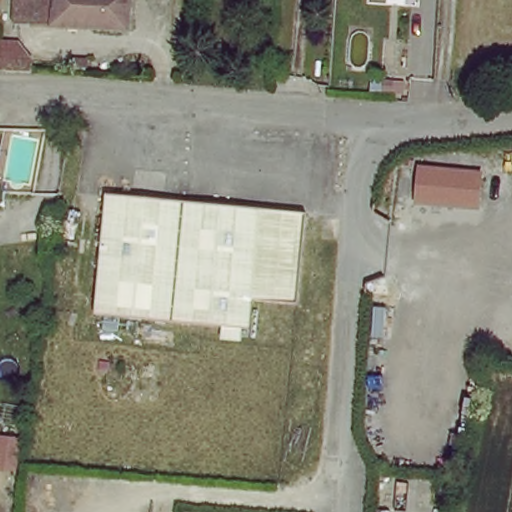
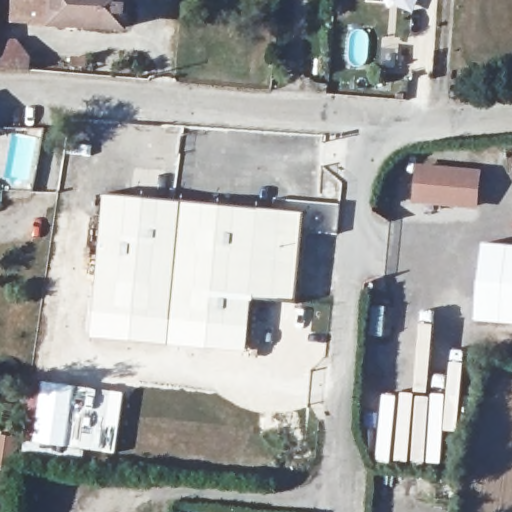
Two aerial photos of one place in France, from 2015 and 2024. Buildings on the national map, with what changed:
unchanged [(126,26),(29,23),(29,0),(128,0),(126,26)]
new [(417,164),(482,170),(477,210),(413,203),(417,164)]
unchanged [(218,336),(219,325),(91,318),(105,192),(303,207),(296,300),(251,298),(248,326),(239,325),(238,337),(218,336)]
new [(481,240),(512,243),(512,324),(472,321),(481,240)]
new [(39,380),(77,385),(72,426),(77,427),(73,448),(29,443),(39,380)]
new [(77,385),(123,391),(114,453),(73,448),(77,427),(72,426),(77,385)]
new [(15,471),(0,470),(0,433),(20,436),(15,471)]

